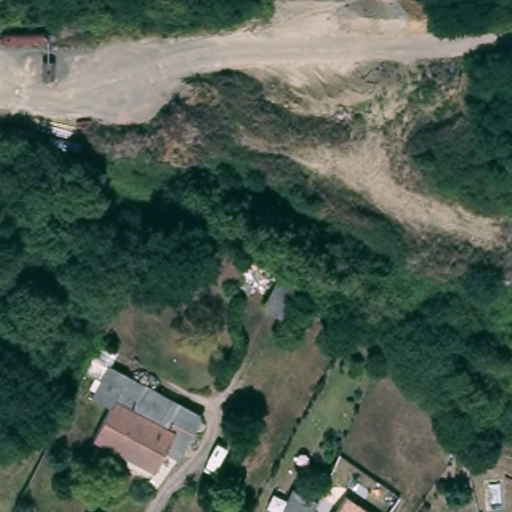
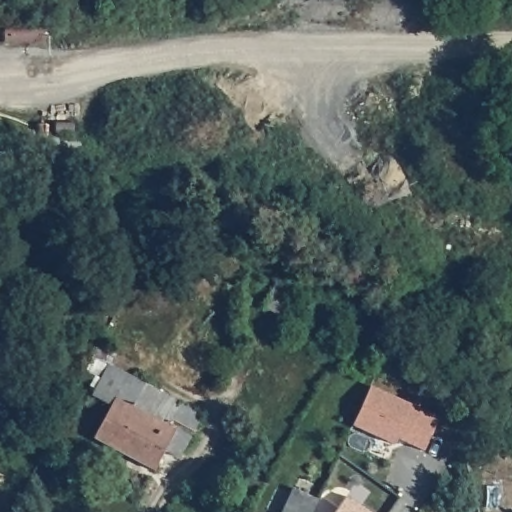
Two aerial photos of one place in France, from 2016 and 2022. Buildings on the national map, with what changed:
unchanged [(224,278),(242,289),(227,319),(204,308),(222,276),(224,278)]
unchanged [(168,452),(155,446),(146,466),(85,436),(99,412),(77,401),(96,361),(192,406),(168,452)]
new [(372,386),(439,417),(424,451),(398,439),(395,445),(354,426),(372,386)]
unchanged [(308,512),(283,512),(292,488),(315,496),(308,512)]
unchanged [(346,496),(370,512),(335,512),(346,496)]

